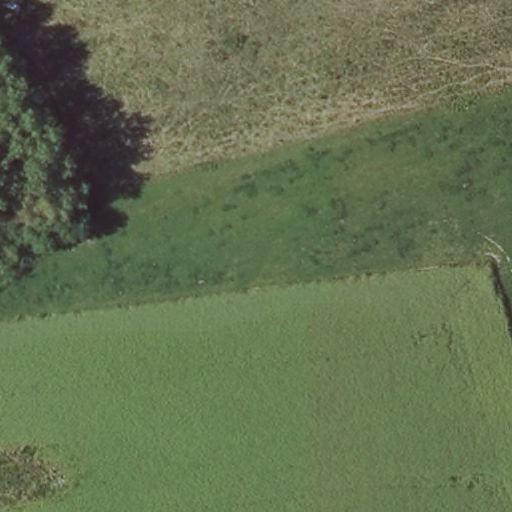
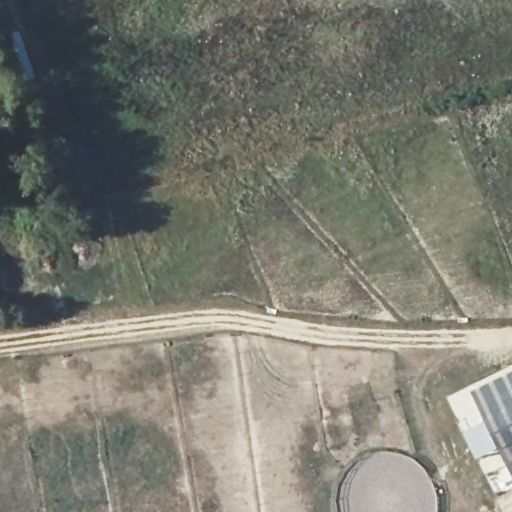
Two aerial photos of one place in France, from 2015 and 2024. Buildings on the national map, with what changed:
new [(512,373),(512,477),(470,392),(512,373)]

